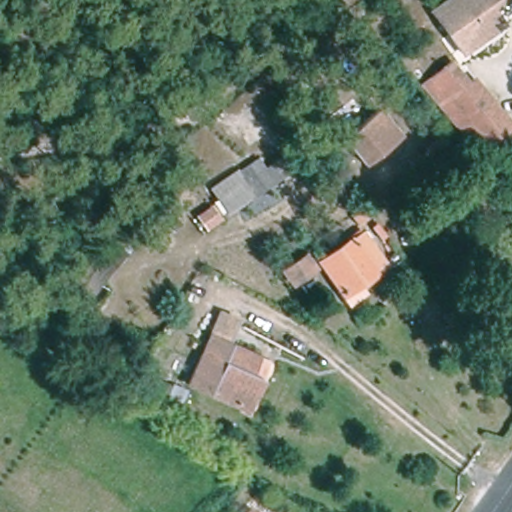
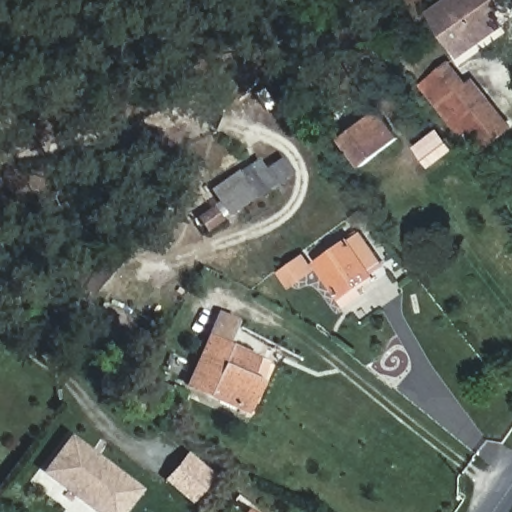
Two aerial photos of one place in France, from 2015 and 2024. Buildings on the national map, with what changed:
unchanged [(436,9),(448,0),(501,0),(491,8),(503,23),(467,50),(436,9)]
unchanged [(459,120),(466,129),(456,136),(417,87),(448,60),(465,81),(471,78),(486,97),(459,120)]
unchanged [(214,119),(251,96),(263,115),(225,139),(214,119)]
unchanged [(483,150),(466,129),(459,120),(486,97),(512,124),(512,128),(483,150)]
unchanged [(364,164),(341,136),(375,110),(396,139),(364,164)]
unchanged [(435,160),(425,146),(438,135),(450,149),(435,160)]
unchanged [(245,168),(254,182),(287,160),(293,169),(225,214),(210,191),(245,168)]
unchanged [(127,253),(125,252),(90,299),(66,282),(113,228),(134,244),(127,253)]
unchanged [(318,260),(363,230),(385,261),(375,268),(376,272),(341,295),(318,260)]
unchanged [(280,267),(302,254),(310,267),(288,280),(280,267)]
unchanged [(225,346),(255,359),(266,364),(259,380),(244,413),(184,386),(216,314),(235,323),(225,346)]
new [(41,473),(70,435),(141,489),(124,512),(93,512),(41,473)]
new [(187,452),(215,476),(191,504),(163,480),(175,466),(187,452)]
unchanged [(245,510),(248,512),(244,512),(245,510)]

